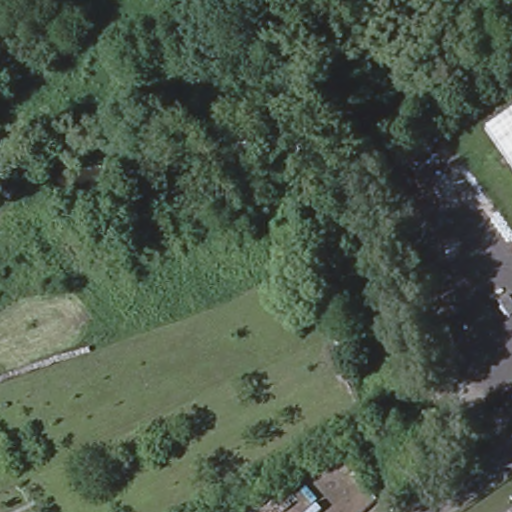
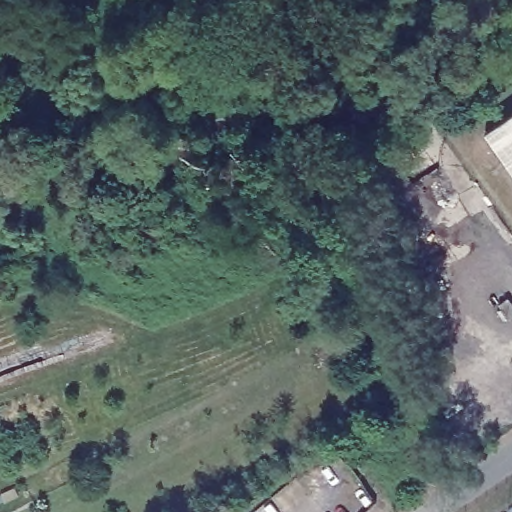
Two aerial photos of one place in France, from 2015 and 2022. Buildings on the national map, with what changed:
unchanged [(512,109),(512,171),(483,128),(512,109)]
unchanged [(512,297),(512,311),(509,313),(499,298),(509,292),(512,297)]

